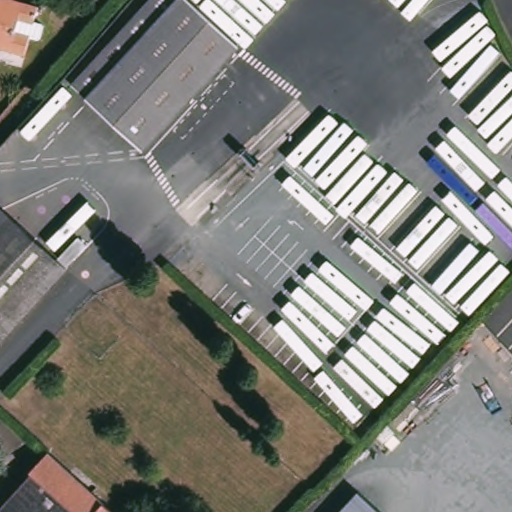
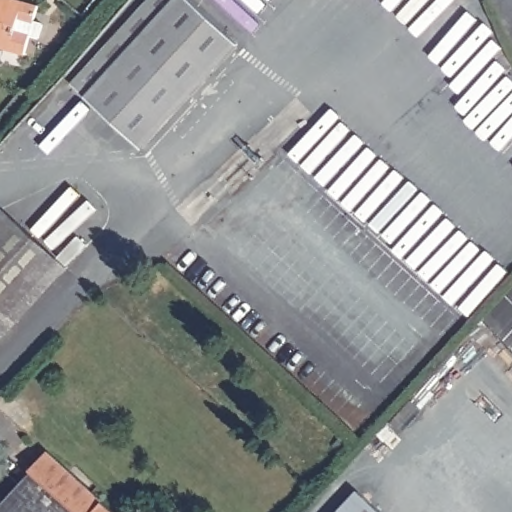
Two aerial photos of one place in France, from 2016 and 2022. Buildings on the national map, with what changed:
unchanged [(40,7),(36,23),(20,19),(17,31),(32,36),(27,54),(8,48),(0,46),(0,0),(15,0),(40,7)]
unchanged [(144,149),(72,84),(146,0),(190,0),(237,42),(229,52),(144,149)]
unchanged [(66,268),(0,341),(0,210),(66,268)]
unchanged [(49,454),(112,512),(1,512),(36,474),(32,471),(49,454)]
unchanged [(382,512),(338,512),(358,490),(382,512)]

